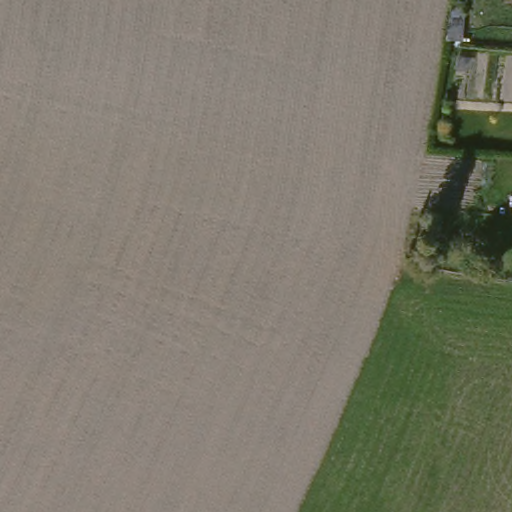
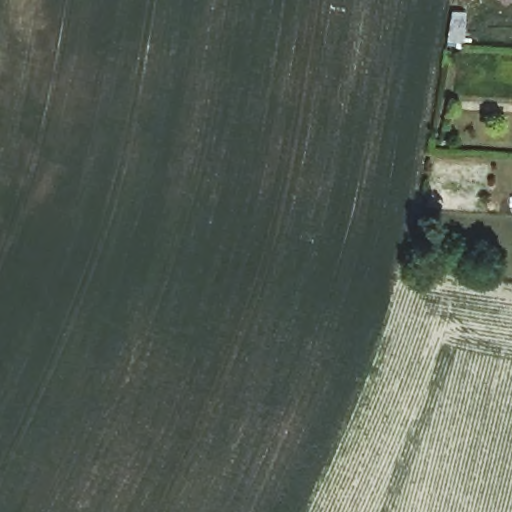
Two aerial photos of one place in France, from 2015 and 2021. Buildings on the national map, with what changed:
unchanged [(476,21),(471,50),(455,49),(461,19),(476,21)]

